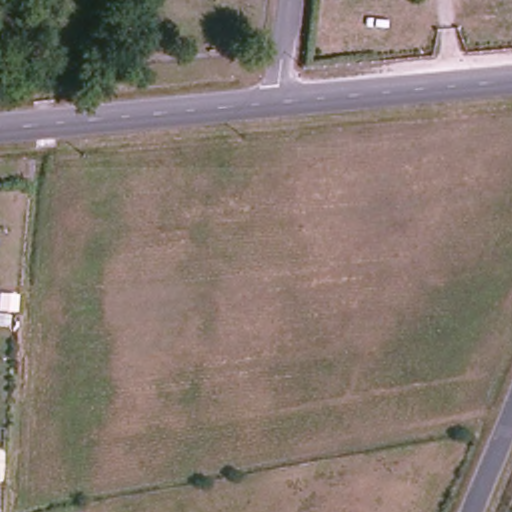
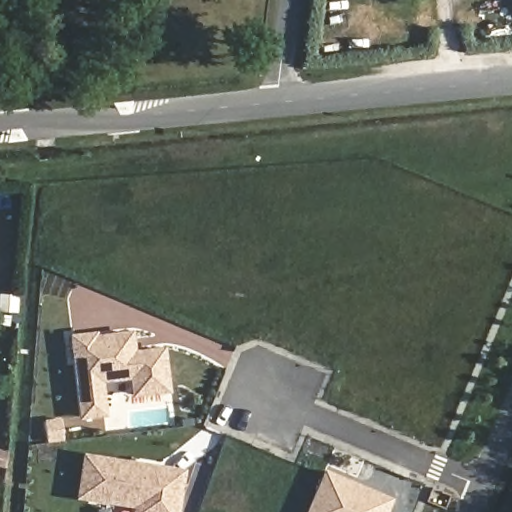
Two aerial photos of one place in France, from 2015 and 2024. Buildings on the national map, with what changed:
new [(91,334),(91,338),(127,334),(128,349),(158,345),(164,390),(130,394),(128,376),(96,380),(100,414),(77,417),(68,337),(91,334)]
new [(76,499),(82,454),(187,469),(180,512),(134,512),(134,508),(76,499)]
new [(386,512),(304,512),(322,468),(392,498),(386,512)]

